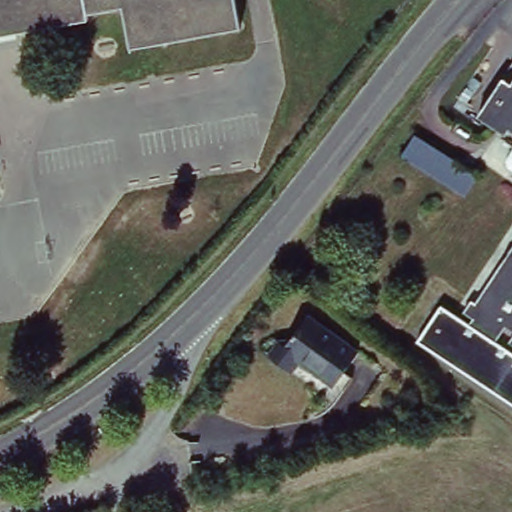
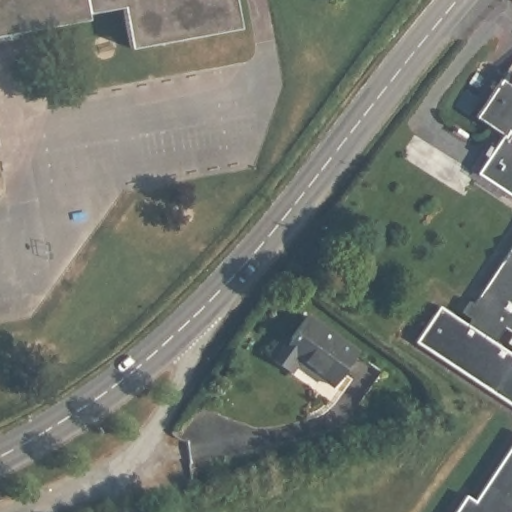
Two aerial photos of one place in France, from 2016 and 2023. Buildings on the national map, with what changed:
unchanged [(239,19),(130,45),(121,5),(85,14),(86,18),(0,39),(0,0),(235,0),(239,19)]
unchanged [(510,130),(482,110),(482,109),(507,73),(512,76),(512,127),(510,130)]
unchanged [(403,156),(418,134),(482,174),(467,198),(403,156)]
unchanged [(512,160),(511,152),(512,150),(512,161),(512,160)]
unchanged [(506,321),(496,335),(471,317),(473,311),(464,305),(472,292),(477,295),(512,244),(512,243),(512,325),(506,321)]
unchanged [(417,341),(441,307),(512,352),(512,404),(417,341)]
unchanged [(338,385),(329,378),(296,354),(287,365),(265,347),(276,332),(285,331),(303,308),(355,347),(340,365),(349,372),(338,385)]
unchanged [(510,337),(512,334),(512,339),(510,337)]
new [(456,512),(467,496),(473,501),(512,445),(512,512),(456,512)]

